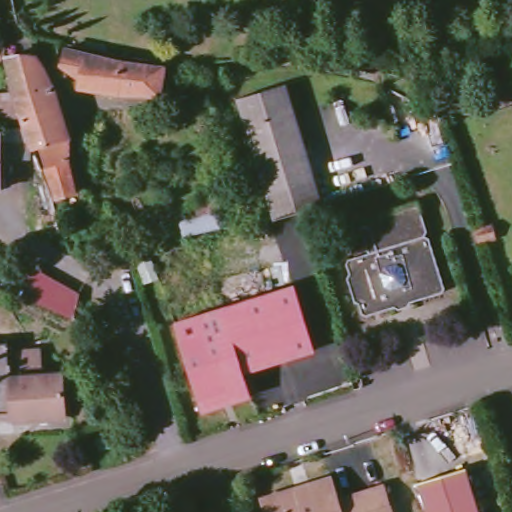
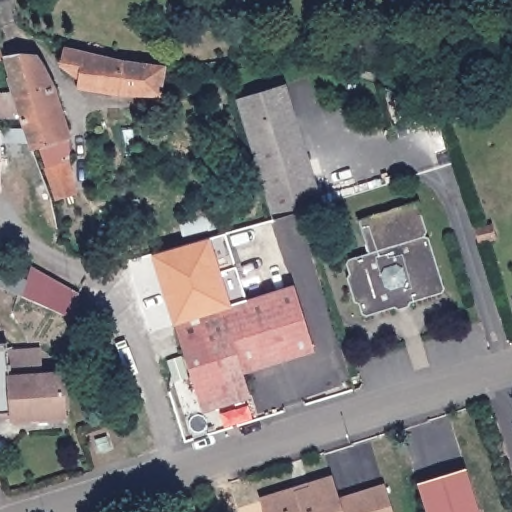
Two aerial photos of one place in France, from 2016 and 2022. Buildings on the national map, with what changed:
unchanged [(58,65),(61,48),(79,52),(160,67),(156,92),(113,92),(77,86),(77,78),(58,65)]
unchanged [(27,131),(27,129),(22,115),(6,116),(0,116),(0,92),(14,91),(9,77),(11,75),(7,57),(34,56),(39,60),(44,67),(55,87),(69,131),(69,160),(76,191),(57,198),(45,167),(47,166),(41,146),(33,149),(32,145),(27,131)]
unchanged [(300,210),(276,217),(239,98),(284,84),(322,203),(300,210)]
unchanged [(0,130),(1,129),(1,189),(0,190),(0,130)]
unchanged [(21,129),(27,129),(27,131),(32,145),(32,189),(1,189),(1,129),(21,129)]
unchanged [(361,314),(357,302),(353,300),(345,278),(348,273),(345,263),(347,260),(366,253),(355,220),(416,202),(425,232),(422,236),(427,238),(443,288),(441,293),(409,303),(407,307),(396,310),(392,308),(366,317),(361,314)]
unchanged [(180,219),(229,208),(232,225),(185,237),(180,219)]
unchanged [(476,228),(491,223),(495,237),(480,241),(476,228)]
new [(235,304),(175,322),(172,322),(151,255),(209,238),(225,233),(246,300),(235,304)]
new [(29,266),(79,293),(70,316),(24,295),(29,266)]
unchanged [(181,338),(175,322),(235,304),(295,285),(315,349),(245,372),(252,396),(204,410),(181,338)]
unchanged [(0,412),(0,342),(9,341),(11,376),(62,373),(65,415),(14,419),(12,411),(0,412)]
unchanged [(97,440),(107,436),(112,447),(101,450),(97,440)]
unchanged [(483,512),(430,512),(422,483),(470,469),(483,512)]
unchanged [(296,491),(297,494),(312,489),(311,487),(333,480),(340,502),(386,488),(393,512),(263,512),(260,502),(296,491)]

